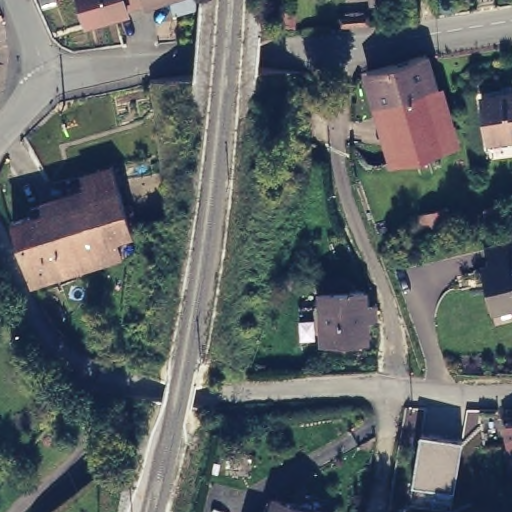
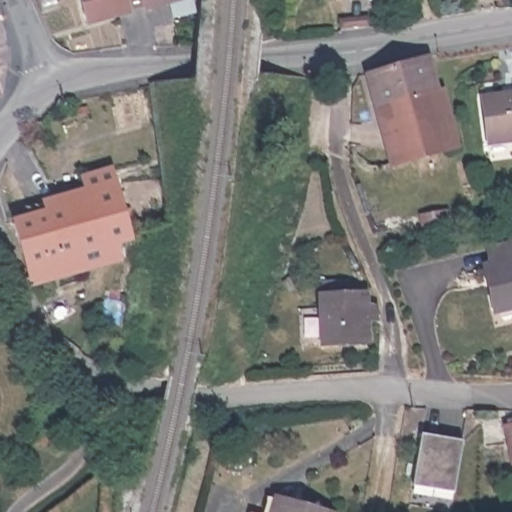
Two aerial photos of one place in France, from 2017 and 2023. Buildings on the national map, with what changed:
unchanged [(124,0),(128,12),(87,25),(80,0),(124,0)]
unchanged [(128,12),(124,0),(144,0),(146,8),(128,12)]
unchanged [(144,0),(172,0),(146,8),(144,0)]
unchanged [(366,74),(425,57),(452,147),(407,160),(391,164),(375,109),(366,74)]
unchanged [(512,91),(512,134),(491,137),(485,95),(512,91)]
unchanged [(12,217),(87,195),(82,172),(110,166),(123,205),(130,203),(137,226),(132,229),(115,239),(118,254),(30,277),(12,217)]
unchanged [(492,245),(512,241),(512,303),(500,306),(496,286),(490,264),(497,262),(492,245)]
unchanged [(316,295),(358,293),(360,307),(368,307),(370,321),(360,322),(360,343),(317,345),(316,295)]
unchanged [(512,426),(512,465),(504,427),(512,426)]
unchanged [(280,498),(327,512),(276,512),(280,498)]
unchanged [(262,511),(266,512),(262,512),(262,511)]

